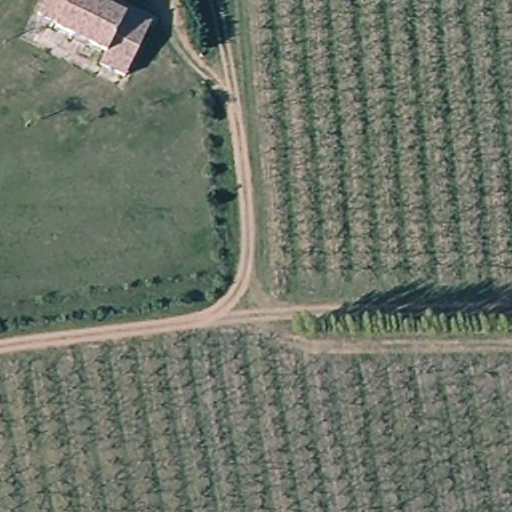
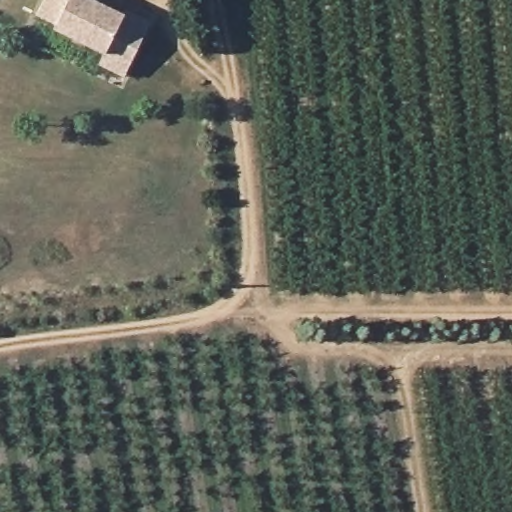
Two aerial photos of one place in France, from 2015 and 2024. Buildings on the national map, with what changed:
unchanged [(122,76),(97,62),(103,52),(54,26),(57,21),(37,11),(44,0),(95,0),(123,16),(126,11),(150,25),(122,76)]

